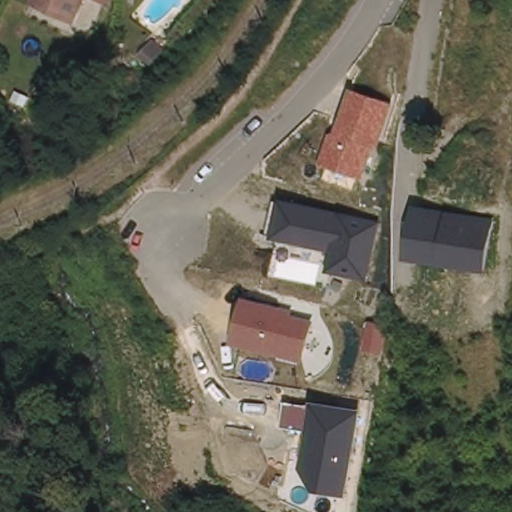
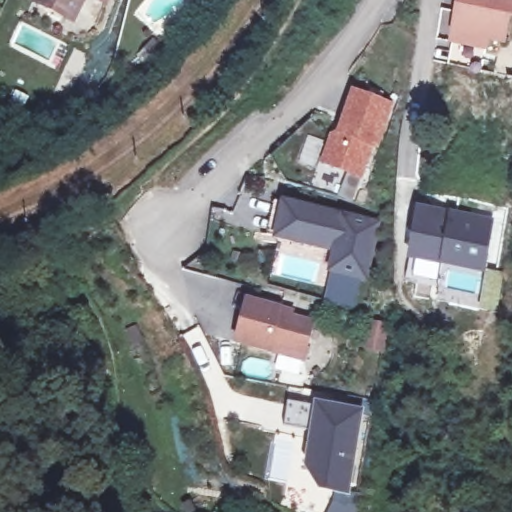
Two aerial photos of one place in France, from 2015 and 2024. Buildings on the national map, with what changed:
unchanged [(86,0),(77,21),(32,1),(32,0),(86,0)]
unchanged [(96,0),(112,0),(110,6),(96,0)]
new [(512,0),(512,17),(511,16),(506,44),(489,41),(487,50),(450,43),(458,0),(512,0)]
unchanged [(381,150),(376,149),(366,181),(322,168),(332,135),(340,134),(353,90),(395,103),(381,150)]
unchanged [(382,222),(370,283),(327,274),(331,252),(275,241),(285,202),(382,222)]
unchanged [(493,219),(483,274),(407,261),(416,206),(493,219)]
unchanged [(294,317),(315,321),(306,362),(236,346),(247,300),(295,311),(294,317)]
unchanged [(314,407),(314,402),(360,409),(347,497),(319,492),(302,468),(307,432),(282,428),(288,403),(314,407)]

